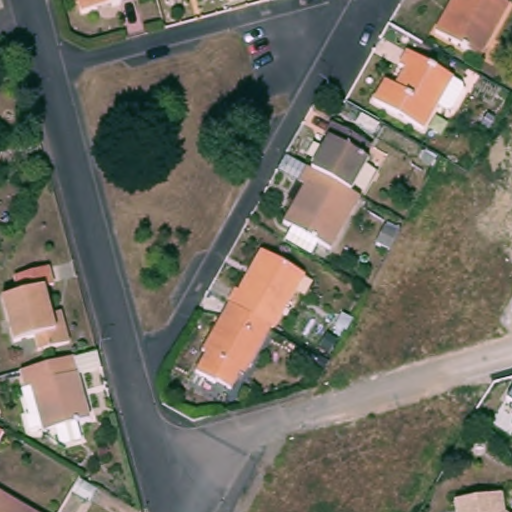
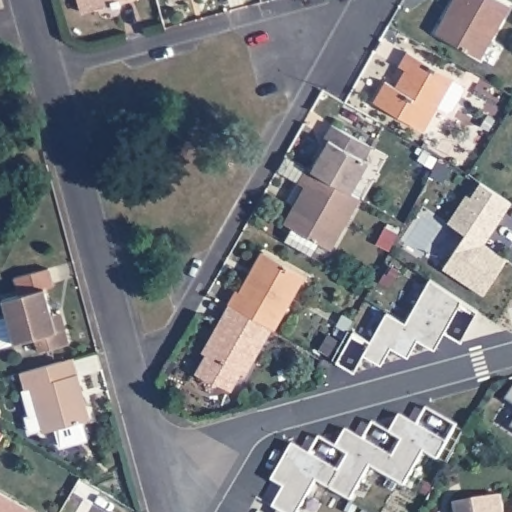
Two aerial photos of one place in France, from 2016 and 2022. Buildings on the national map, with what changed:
unchanged [(74,0),(128,0),(77,14),(74,0)]
unchanged [(479,58),(435,34),(445,15),(453,0),(497,0),(508,6),(479,58)]
unchanged [(385,83),(393,88),(403,71),(397,67),(406,52),(453,80),(423,131),(372,103),(385,83)]
unchanged [(333,130),(328,128),(336,115),(375,137),(367,150),(372,153),(355,183),(317,161),(333,130)]
unchanged [(355,183),(363,188),(334,240),(322,234),(315,246),(288,232),(296,219),(288,215),(300,195),(293,191),(303,174),(283,162),(291,147),(312,159),(317,161),(355,183)]
new [(447,223),(466,195),(470,198),(480,183),(511,204),(491,234),(483,245),(506,260),(483,295),(443,268),(465,235),(447,223)]
unchanged [(385,229),(397,235),(388,250),(377,244),(385,229)]
unchanged [(236,291),(241,292),(262,254),(303,276),(272,330),(270,328),(232,307),(227,305),(236,291)]
unchanged [(65,328),(69,343),(37,351),(34,337),(12,343),(2,301),(20,295),(15,277),(49,269),(54,286),(44,290),(52,315),(61,313),(65,328)]
new [(386,312),(405,322),(430,280),(461,300),(434,348),(417,338),(408,356),(391,347),(381,364),(363,355),(386,312)]
unchanged [(247,368),(243,366),(230,390),(205,375),(204,378),(197,374),(207,356),(202,353),(222,318),(225,320),(232,307),(270,328),(247,368)]
unchanged [(352,321),(346,332),(336,327),(342,315),(352,321)]
unchanged [(327,336),(335,341),(328,353),(321,348),(327,336)]
unchanged [(96,355),(100,370),(78,376),(90,420),(77,423),(81,441),(64,445),(59,443),(56,428),(42,432),(42,428),(30,432),(26,419),(31,417),(24,391),(25,390),(21,373),(74,358),(74,360),(96,355)]
unchanged [(512,391),(512,403),(507,400),(512,391)]
new [(293,443),(340,470),(350,453),(337,446),(347,429),(393,456),(403,439),(391,431),(401,415),(448,442),(438,460),(425,451),(405,485),(372,466),(352,500),(318,480),(299,512),(283,512),(280,510),(274,506),(286,487),(273,480),(293,443)]
unchanged [(455,495),(503,489),(507,508),(511,512),(457,512),(455,495)]
unchanged [(34,512),(0,512),(0,492),(34,512)]
new [(280,510),(283,512),(278,512),(280,510)]

